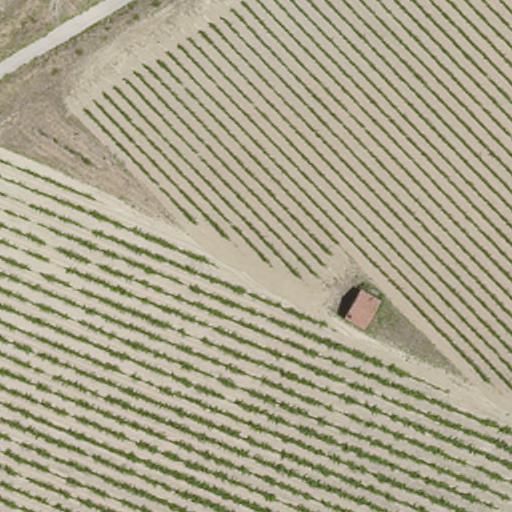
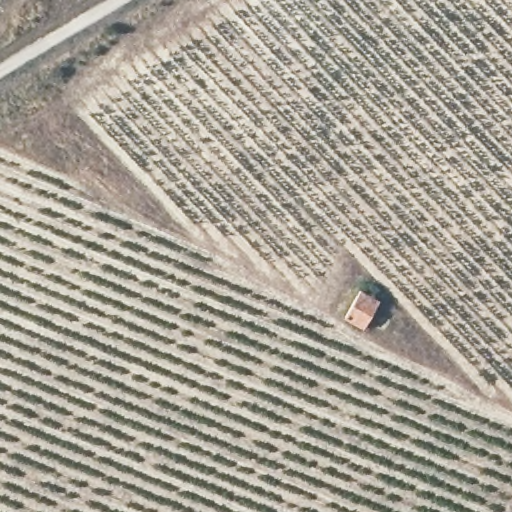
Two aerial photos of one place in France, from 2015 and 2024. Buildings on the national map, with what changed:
unchanged [(386,301),(365,333),(340,319),(362,286),(386,301)]

